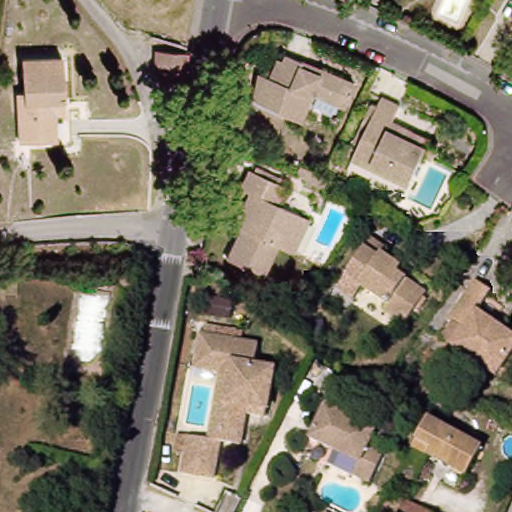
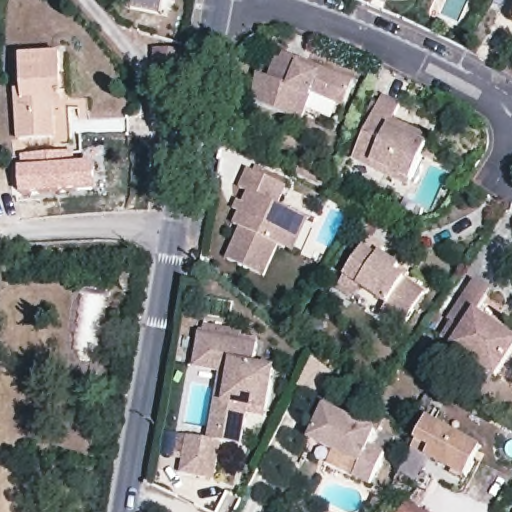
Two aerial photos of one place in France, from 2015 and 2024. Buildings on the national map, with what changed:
unchanged [(157,79),(156,50),(186,51),(183,81),(157,79)]
unchanged [(22,56),(63,54),(67,96),(73,96),(75,132),(23,137),(20,88),(24,88),(22,56)]
unchanged [(339,110),(307,97),(296,124),(246,103),(258,77),(265,79),(274,61),(279,62),(281,56),(294,62),(316,71),(350,85),(339,110)]
unchanged [(370,165),(352,156),(356,147),(381,93),(400,101),(392,118),(413,127),(431,135),(428,142),(412,176),(409,182),(392,174),(370,165)]
new [(75,153),(77,164),(95,164),(97,193),(22,199),(19,154),(75,153)]
unchanged [(297,255),(288,250),(281,249),(268,278),(230,261),(244,231),(233,225),(249,193),(240,188),(248,171),(275,183),(277,178),(288,182),(278,207),(303,217),(314,223),(297,255)]
unchanged [(414,333),(394,321),(397,313),(361,288),(353,300),(334,283),(371,239),(381,246),(395,256),(391,262),(407,273),(420,282),(416,290),(435,303),(414,333)]
unchanged [(512,344),(512,358),(505,368),(497,379),(443,341),(452,329),(447,324),(474,288),(490,298),(477,319),(501,335),(512,344)]
unchanged [(177,431),(187,433),(207,438),(217,440),(234,363),(198,356),(203,333),(206,334),(208,324),(220,327),(218,336),(261,346),(256,367),(275,371),(267,411),(265,418),(246,413),(239,445),(218,440),(216,449),(210,477),(179,470),(183,450),(173,448),(177,431)]
unchanged [(222,371),(196,365),(198,356),(234,363),(217,440),(207,438),(222,371)]
unchanged [(327,410),(379,431),(373,446),(388,452),(376,481),(360,474),(364,463),(314,443),(327,410)]
unchanged [(436,415),(494,443),(481,472),(436,452),(420,444),(424,436),(427,430),(436,415)]
unchanged [(377,491),(385,496),(379,506),(371,502),(377,491)]
unchanged [(415,512),(396,512),(400,504),(415,512)]
unchanged [(324,512),(325,509),(331,512),(324,512)]

